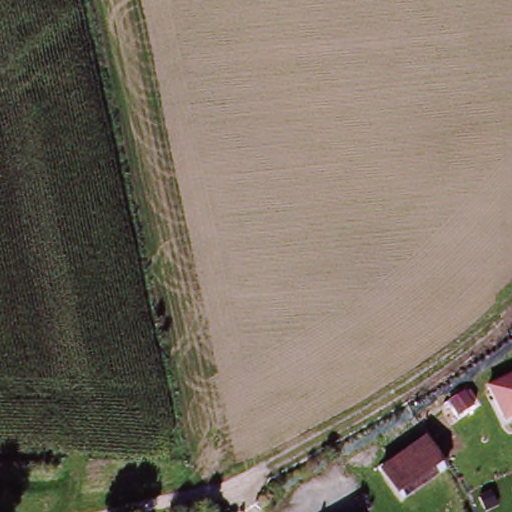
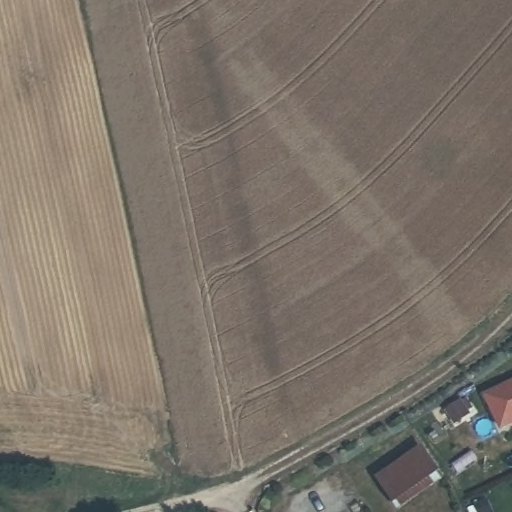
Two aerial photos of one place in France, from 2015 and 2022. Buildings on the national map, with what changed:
unchanged [(485,395),(512,380),(512,424),(499,429),(485,395)]
unchanged [(420,445),(442,476),(396,509),(376,479),(420,445)]

